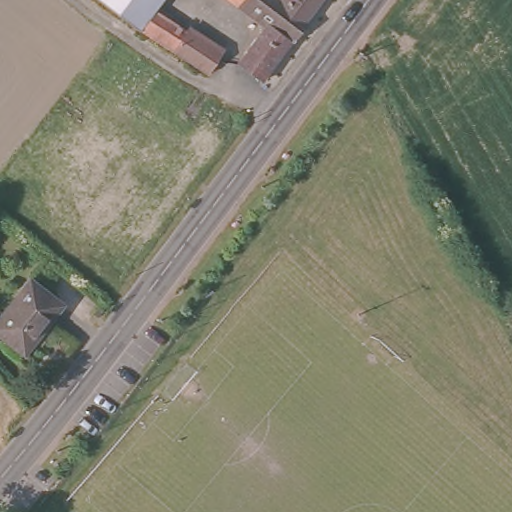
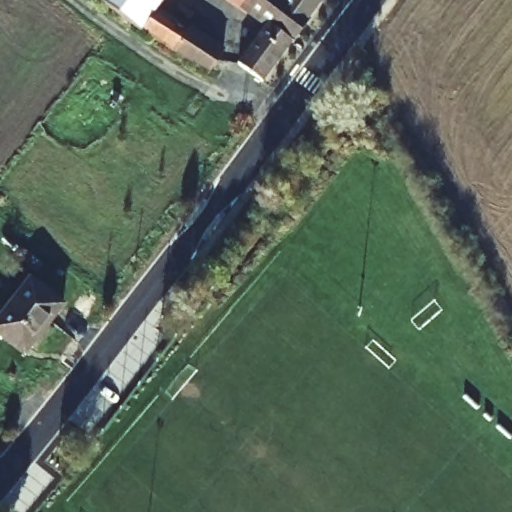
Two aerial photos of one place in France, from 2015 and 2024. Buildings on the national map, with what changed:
unchanged [(159,7),(190,31),(193,29),(223,51),(206,78),(142,31),(140,32),(138,35),(102,5),(96,0),(165,0),(159,7)]
unchanged [(301,19),(305,23),(263,82),(238,62),(265,24),(234,0),(276,0),(301,19)]
unchanged [(301,19),(276,0),(323,0),(305,23),(301,19)]
unchanged [(30,344),(15,331),(7,341),(0,336),(0,313),(27,281),(58,307),(30,344)]

